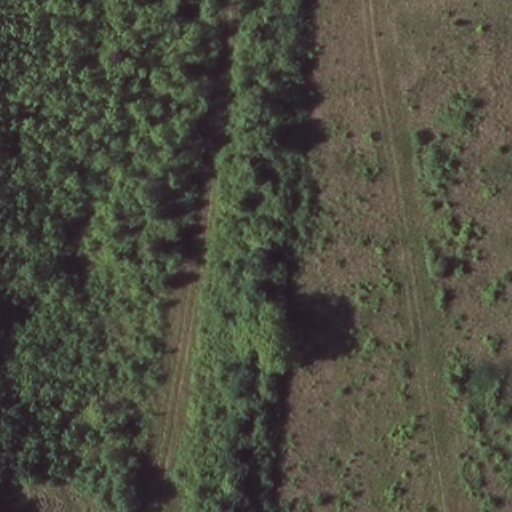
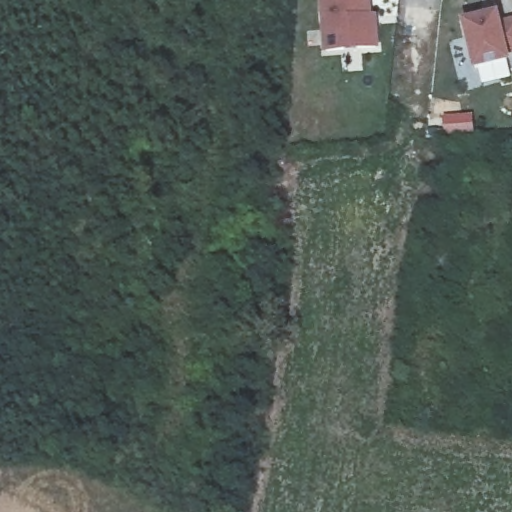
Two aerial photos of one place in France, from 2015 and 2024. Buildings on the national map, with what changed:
new [(368,20),(373,19),(376,49),(325,52),(323,0),(367,0),(368,20)]
new [(500,28),(512,25),(512,55),(508,56),(510,62),(478,71),(466,26),(498,18),(500,28)]

